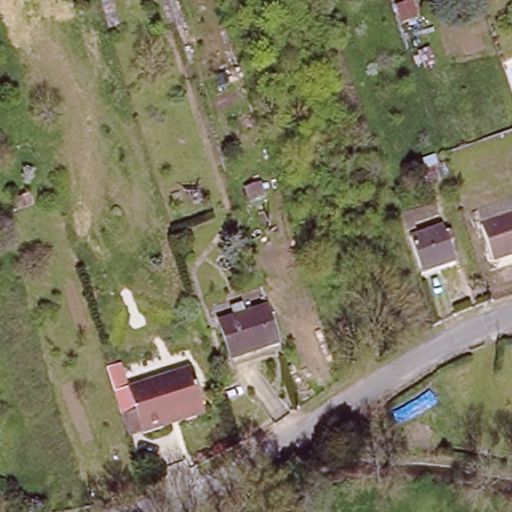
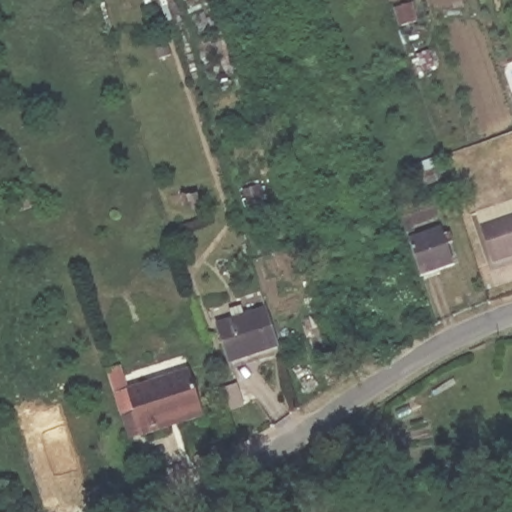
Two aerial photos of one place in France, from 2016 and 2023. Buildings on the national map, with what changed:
unchanged [(376,167),(365,171),(361,160),(372,157),(376,167)]
unchanged [(436,180),(426,184),(422,174),(432,170),(436,180)]
unchanged [(413,229),(415,234),(406,236),(401,220),(433,209),(437,221),(413,229)]
unchanged [(480,225),(512,214),(512,254),(493,261),(480,225)]
unchanged [(449,237),(452,246),(446,247),(453,268),(438,273),(440,277),(425,282),(423,278),(421,279),(409,244),(441,232),(443,238),(449,237)]
unchanged [(428,326),(400,336),(391,310),(418,300),(428,326)]
unchanged [(230,313),(241,310),(245,321),(267,313),(279,351),(230,366),(218,330),(233,325),(230,313)]
unchanged [(353,331),(341,336),(336,325),(348,320),(353,331)]
unchanged [(198,421),(142,438),(141,436),(125,442),(118,422),(135,417),(125,390),(186,371),(198,421)]

